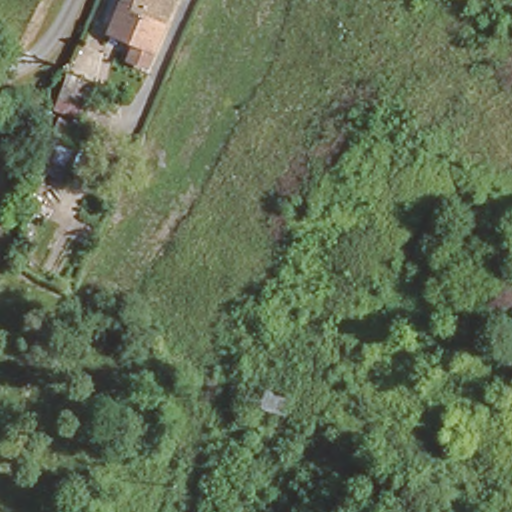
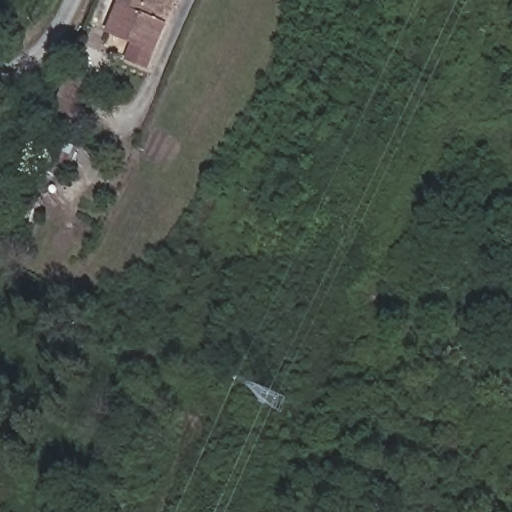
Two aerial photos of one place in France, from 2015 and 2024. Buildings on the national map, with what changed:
unchanged [(126,61),(132,41),(105,31),(117,0),(178,0),(150,70),(126,61)]
unchanged [(31,164),(52,75),(91,79),(74,172),(31,164)]

